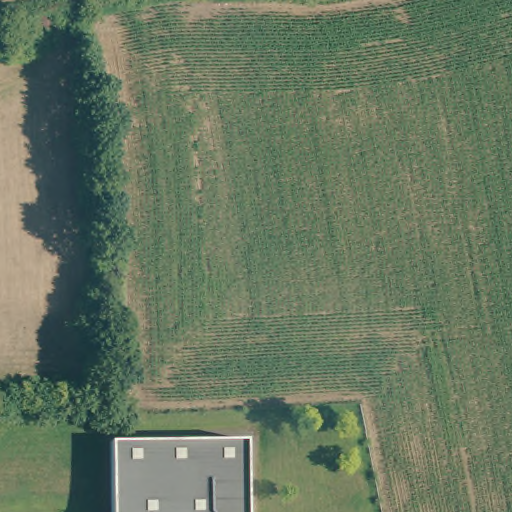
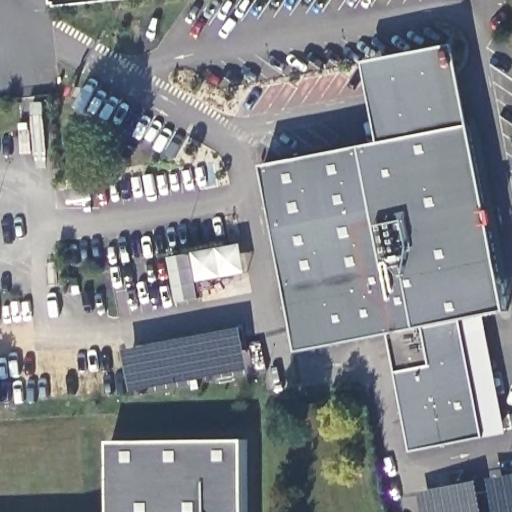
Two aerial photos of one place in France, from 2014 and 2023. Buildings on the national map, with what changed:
new [(457,45),(508,312),(486,316),(507,433),(411,452),(389,335),(302,352),(265,166),(382,144),(366,62),(457,45)]
unchanged [(110,438),(112,438),(246,437),(246,512),(110,512),(110,486),(110,438)]

